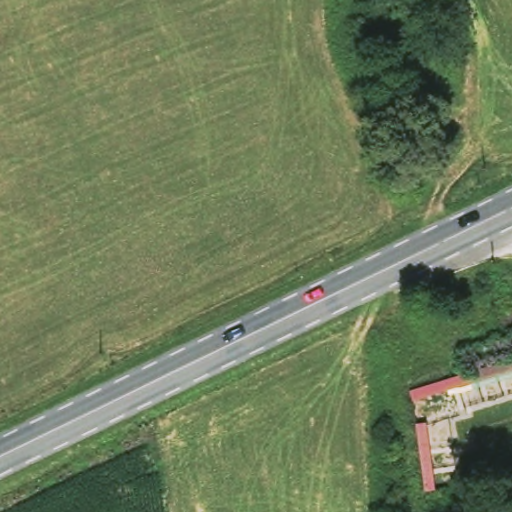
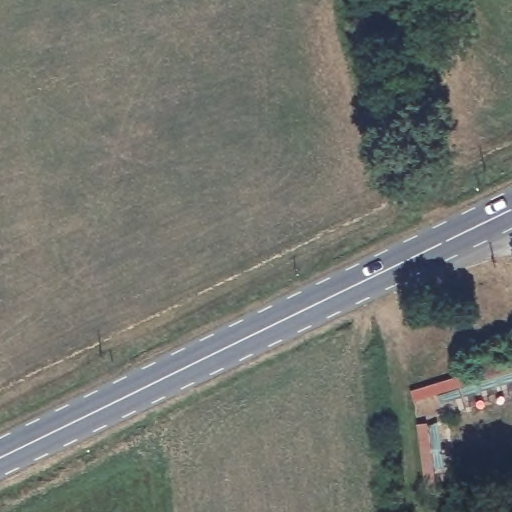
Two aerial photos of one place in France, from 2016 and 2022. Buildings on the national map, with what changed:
unchanged [(412,403),(409,390),(512,359),(512,372),(412,403)]
unchanged [(436,491),(425,492),(416,425),(427,423),(436,491)]

